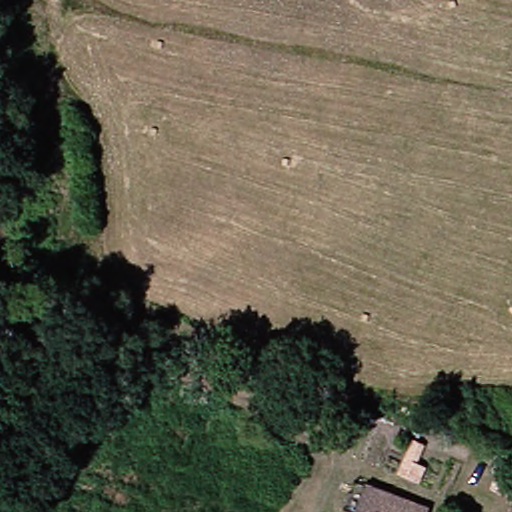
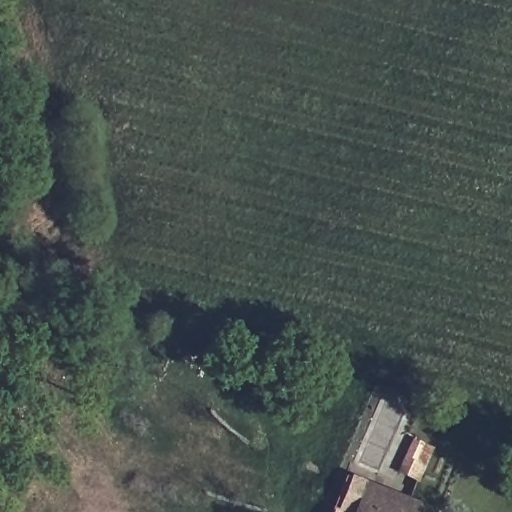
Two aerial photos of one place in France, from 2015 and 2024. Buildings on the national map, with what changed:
unchanged [(403,512),(351,512),(362,483),(407,500),(403,512)]
unchanged [(422,505),(419,512),(403,512),(407,500),(422,505)]

